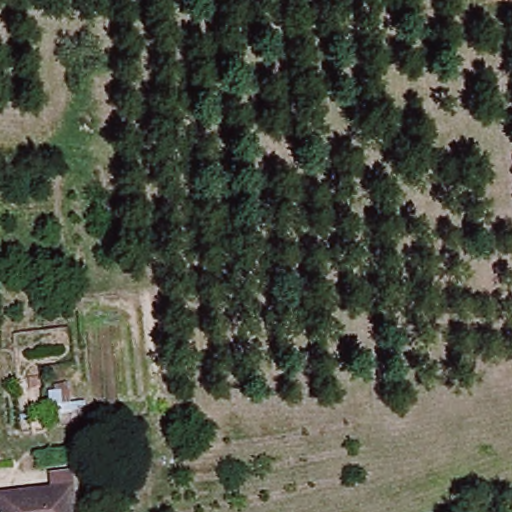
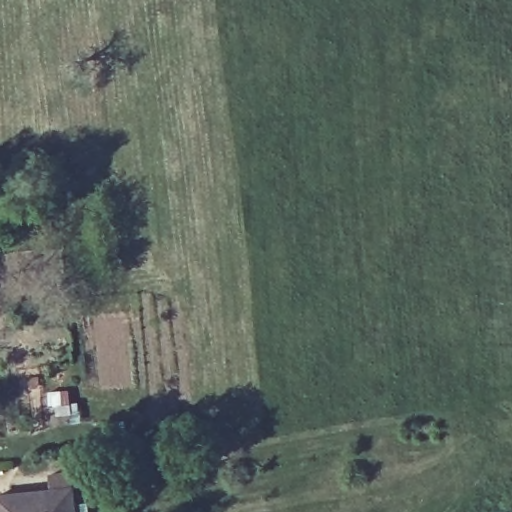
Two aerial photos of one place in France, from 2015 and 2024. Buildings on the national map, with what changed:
unchanged [(67,478),(74,512),(0,512),(0,490),(67,478)]

